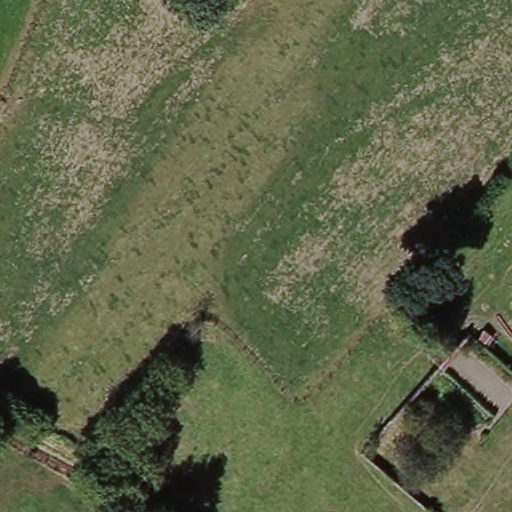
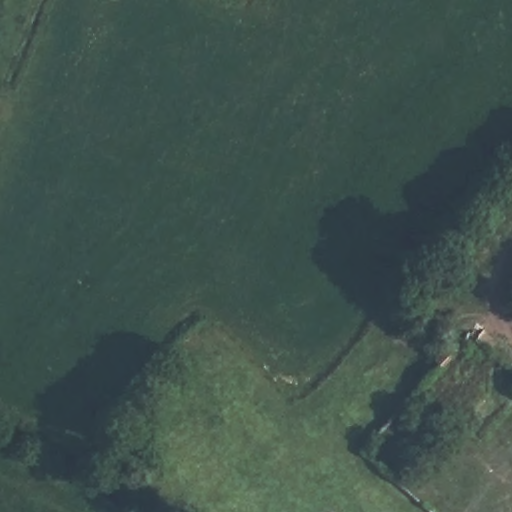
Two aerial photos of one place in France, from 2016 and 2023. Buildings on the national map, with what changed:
unchanged [(455,332),(461,337),(456,343),(450,338),(455,332)]
unchanged [(411,360),(426,343),(437,352),(423,371),(411,360)]

